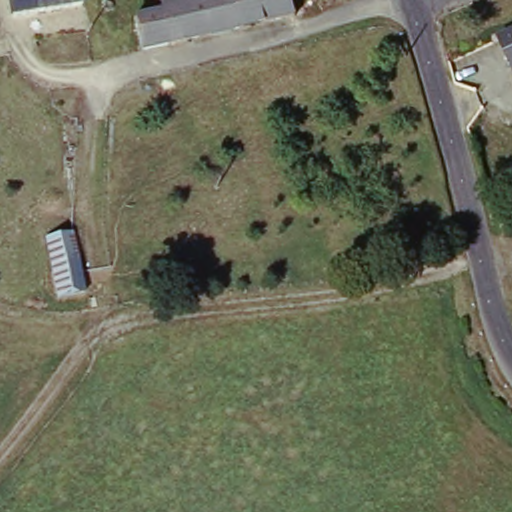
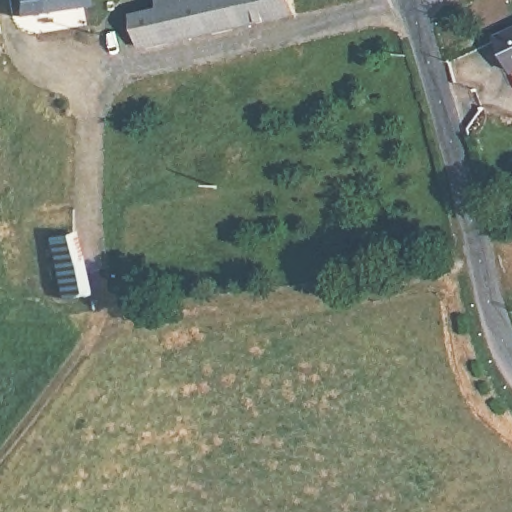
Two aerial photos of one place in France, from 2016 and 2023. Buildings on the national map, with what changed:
unchanged [(10,0),(82,0),(83,6),(14,16),(10,0)]
unchanged [(294,0),(298,19),(143,54),(134,22),(160,16),(238,0),(294,0)]
unchanged [(238,0),(160,16),(157,0),(238,0)]
unchanged [(499,43),(512,37),(512,69),(499,43)]
unchanged [(54,300),(51,263),(47,235),(78,229),(88,294),(54,300)]

